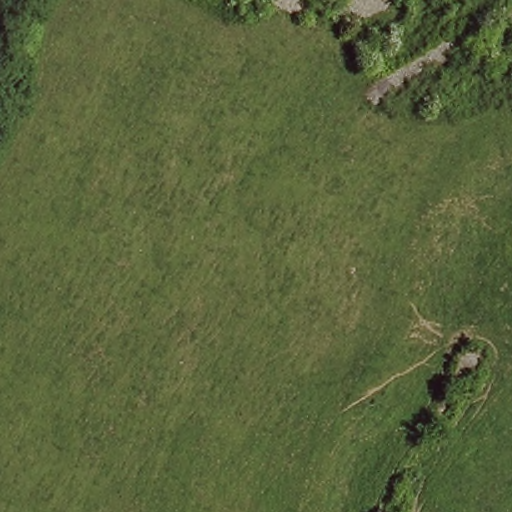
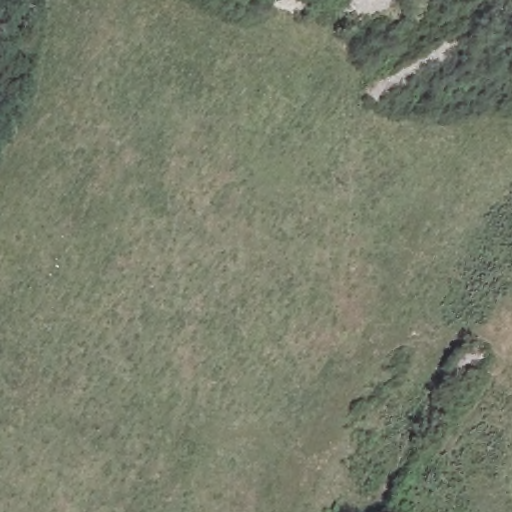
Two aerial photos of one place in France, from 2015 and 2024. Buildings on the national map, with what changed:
[]

